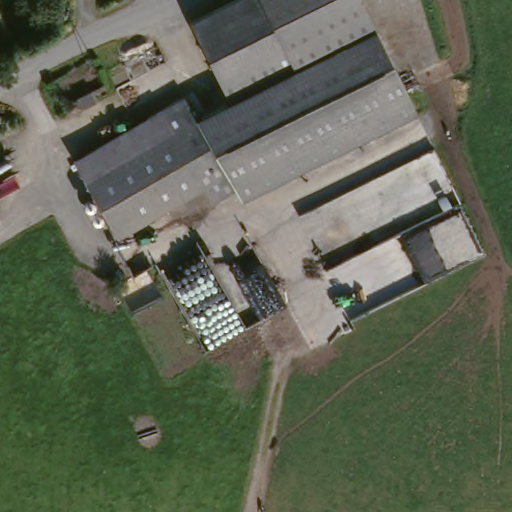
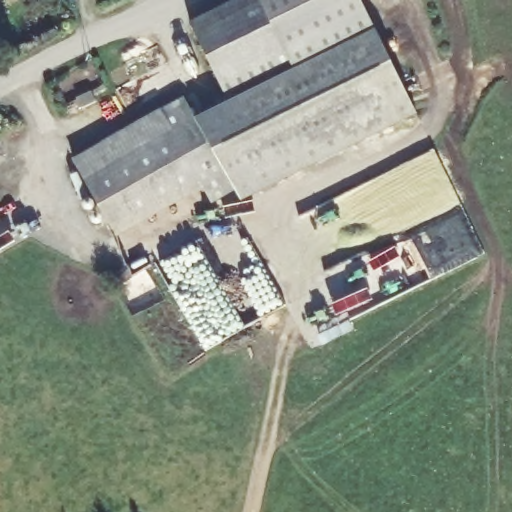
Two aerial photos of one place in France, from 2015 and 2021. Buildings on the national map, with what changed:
unchanged [(246,200),(240,190),(201,120),(235,104),(195,24),(243,0),(365,0),(420,114),(246,200)]
unchanged [(216,204),(208,190),(205,182),(165,110),(190,97),(201,120),(240,190),(216,204)]
unchanged [(185,194),(118,231),(79,161),(165,110),(205,182),(185,194)]
unchanged [(2,220),(0,221),(0,215),(2,220)]

